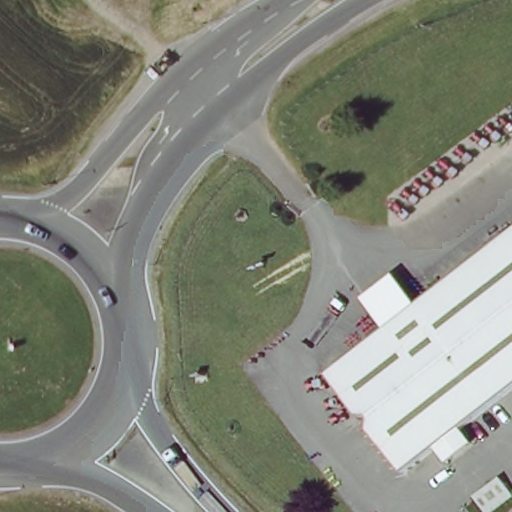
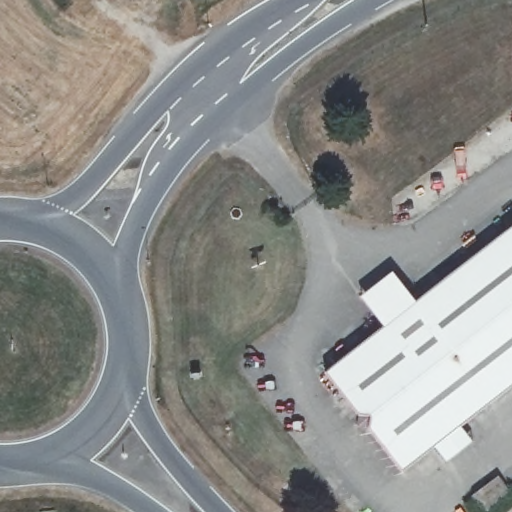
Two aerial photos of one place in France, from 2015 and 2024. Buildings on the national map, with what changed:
unchanged [(451,344),(437,323),(405,346),(389,321),(512,223),(512,298),(451,344)]
unchanged [(435,442),(401,468),(369,425),(359,423),(359,412),(325,370),(389,321),(405,346),(437,323),(451,344),(512,298),(512,382),(462,421),(473,437),(445,458),(435,442)]

